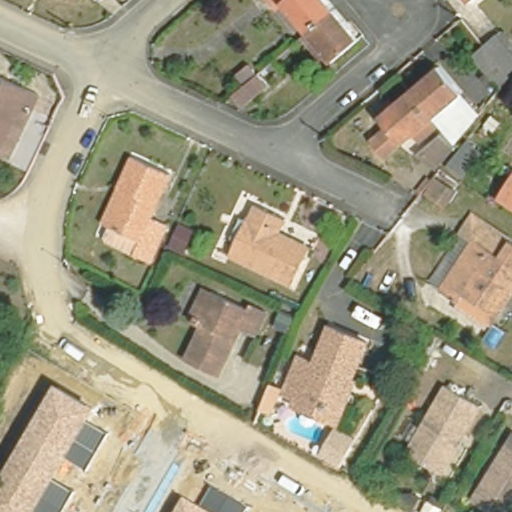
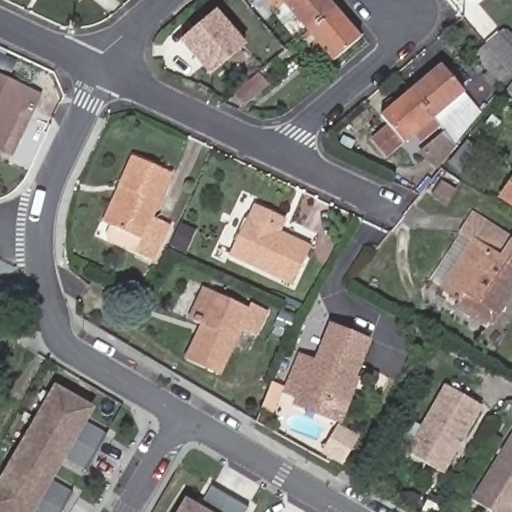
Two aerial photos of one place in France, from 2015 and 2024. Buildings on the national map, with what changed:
unchanged [(307,31),(282,1),(276,6),(271,0),(327,0),(333,8),(307,31)]
unchanged [(475,1),(474,0),(477,0),(475,1)]
unchanged [(359,38),(333,61),(307,31),(333,8),(359,38)]
new [(217,10),(247,46),(227,62),(208,77),(178,41),(198,26),(217,10)]
unchanged [(485,46),(498,35),(507,27),(512,33),(512,70),(508,74),(512,78),(501,90),(473,56),(485,46)]
unchanged [(254,72),(243,82),(236,75),(248,65),(254,72)]
unchanged [(433,166),(431,169),(420,154),(423,151),(441,135),(434,126),(404,91),(435,65),(476,115),(459,135),(450,146),(435,165),(433,166)]
unchanged [(258,73),(267,85),(242,106),(233,95),(258,73)]
unchanged [(6,156),(0,153),(0,76),(39,95),(32,110),(9,157),(6,156)]
unchanged [(434,126),(416,142),(409,134),(380,157),(365,139),(382,125),(375,115),(404,91),(434,126)]
unchanged [(475,154),(458,175),(444,164),(462,142),(475,154)]
unchanged [(171,169),(151,211),(168,219),(150,257),(136,250),(104,236),(111,222),(103,219),(119,184),(134,152),(171,169)]
unchanged [(441,210),(415,194),(431,174),(453,192),(441,210)]
unchanged [(512,180),(512,205),(500,197),(512,180)]
unchanged [(310,245),(310,247),(307,254),(304,260),(293,286),(229,255),(249,215),(254,204),(287,219),(281,232),(297,240),(298,240),(310,245)]
unchanged [(192,225),(180,250),(165,243),(176,217),(192,225)]
unchanged [(486,224),(512,241),(512,290),(492,319),(443,288),(486,224)]
unchanged [(250,300),(266,307),(254,332),(238,325),(218,370),(185,355),(201,321),(194,318),(187,315),(203,282),(210,286),(248,305),(250,300)]
unchanged [(303,400),(305,394),(294,390),(310,351),(326,358),(341,320),(380,336),(351,405),(345,418),(303,400)]
unchanged [(68,456),(54,480),(76,493),(66,512),(0,512),(0,480),(57,385),(95,408),(87,421),(108,434),(89,469),(68,456)]
unchanged [(479,415),(458,450),(454,448),(451,453),(455,456),(439,483),(405,463),(445,395),(479,415)]
unchanged [(512,447),(512,512),(485,512),(476,507),(512,447)]
unchanged [(201,505),(213,485),(251,507),(249,512),(177,512),(186,496),(201,505)]

